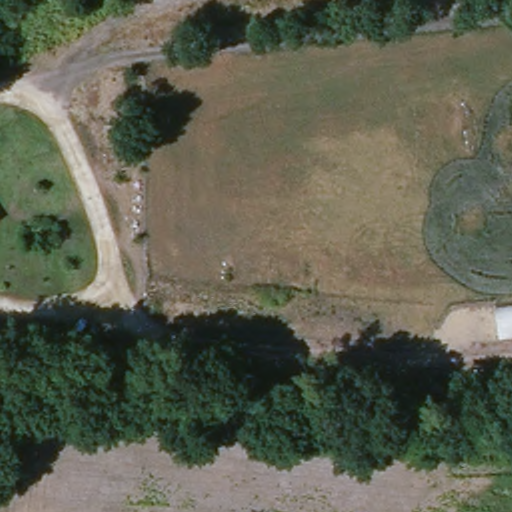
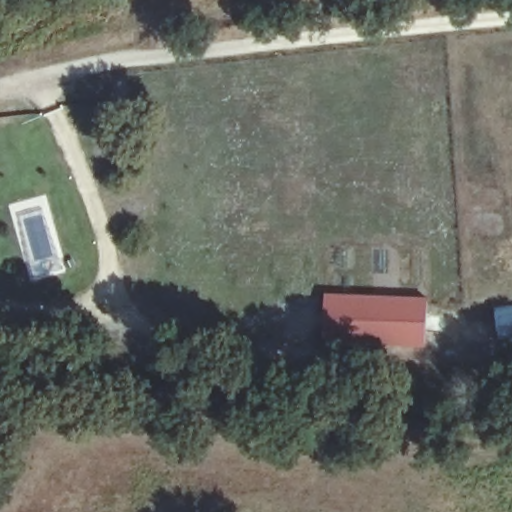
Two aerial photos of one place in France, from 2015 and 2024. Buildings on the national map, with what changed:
new [(428,300),(426,350),(321,345),(325,294),(428,300)]
unchanged [(512,306),(512,339),(499,340),(495,307),(512,306)]

